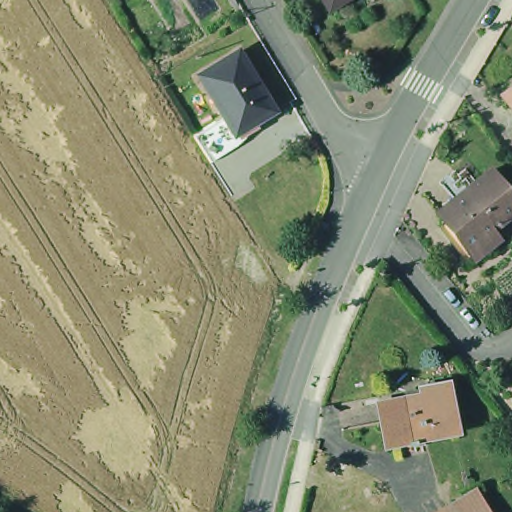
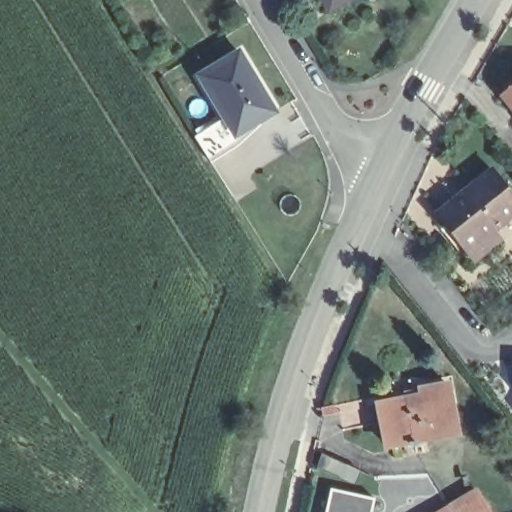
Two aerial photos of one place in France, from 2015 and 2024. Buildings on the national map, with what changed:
unchanged [(318,0),(340,0),(324,10),(318,0)]
unchanged [(198,75),(238,51),(274,114),(257,124),(234,138),(231,133),(198,75)]
unchanged [(501,99),(512,90),(512,113),(501,99)]
unchanged [(210,123),(226,149),(204,162),(188,136),(210,123)]
unchanged [(464,267),(454,257),(461,252),(432,216),(486,174),(512,206),(512,213),(489,231),(497,241),(464,267)]
unchanged [(457,436),(387,451),(382,426),(379,407),(377,400),(419,391),(447,385),(457,436)]
new [(331,488),(376,498),(372,512),(326,512),(331,488)]
unchanged [(449,508),(474,492),(486,512),(443,512),(449,508)]

